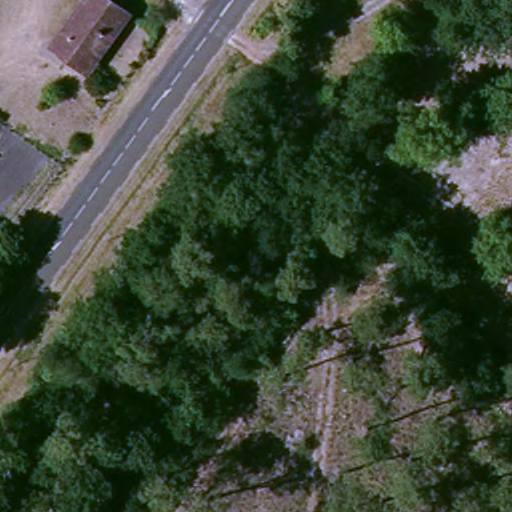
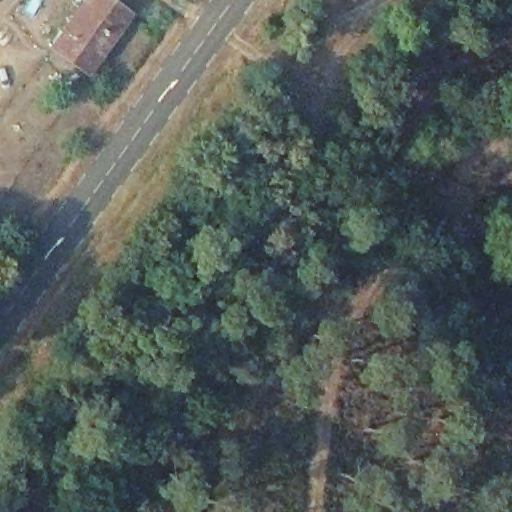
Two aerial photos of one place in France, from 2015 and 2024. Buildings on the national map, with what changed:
unchanged [(90,73),(47,44),(80,0),(114,0),(133,13),(90,73)]

